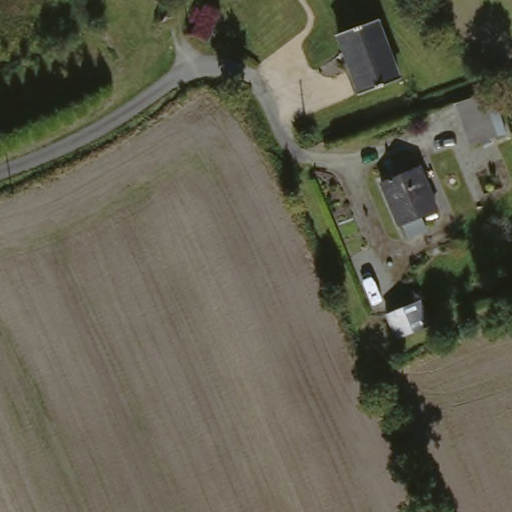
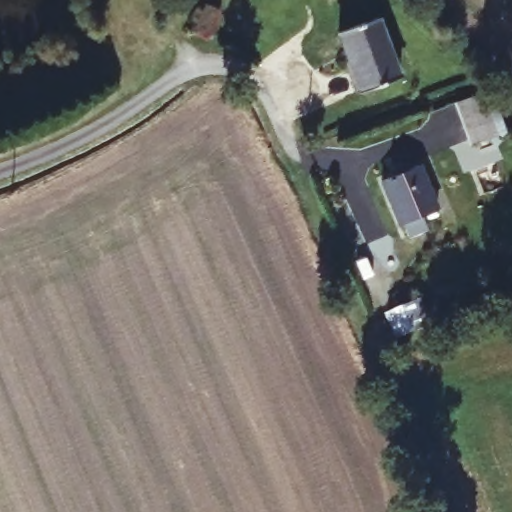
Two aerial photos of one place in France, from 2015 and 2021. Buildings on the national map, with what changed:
unchanged [(205,13),(195,6),(200,0),(214,0),(205,13)]
unchanged [(391,81),(352,93),(335,36),(373,24),(391,81)]
unchanged [(493,93),(498,113),(489,116),(497,146),(469,152),(455,103),(493,93)]
unchanged [(445,204),(427,209),(433,228),(412,235),(407,218),(399,220),(387,182),(434,169),(445,204)]
unchanged [(432,327),(394,342),(382,318),(422,302),(432,327)]

